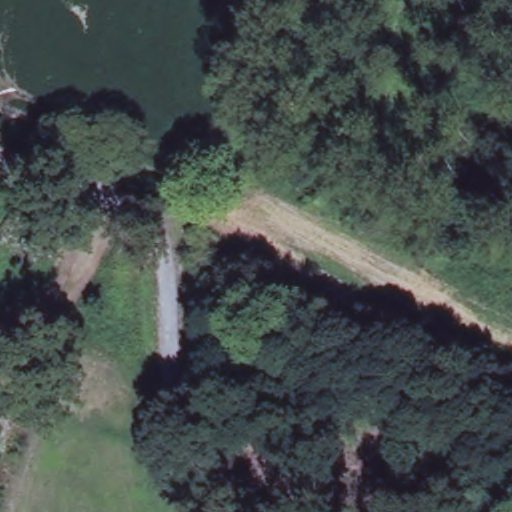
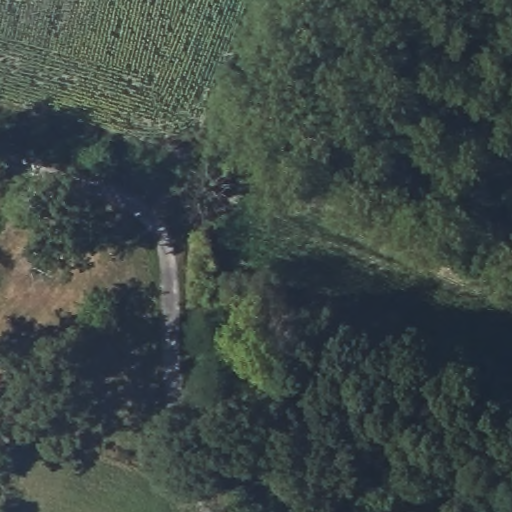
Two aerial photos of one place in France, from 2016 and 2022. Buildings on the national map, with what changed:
[]

